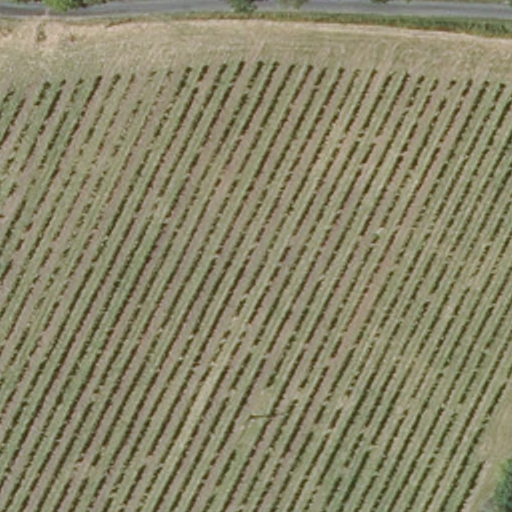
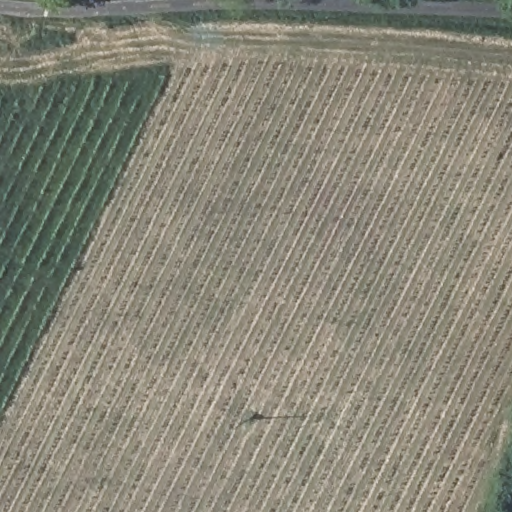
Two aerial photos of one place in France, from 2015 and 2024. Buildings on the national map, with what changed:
[]

